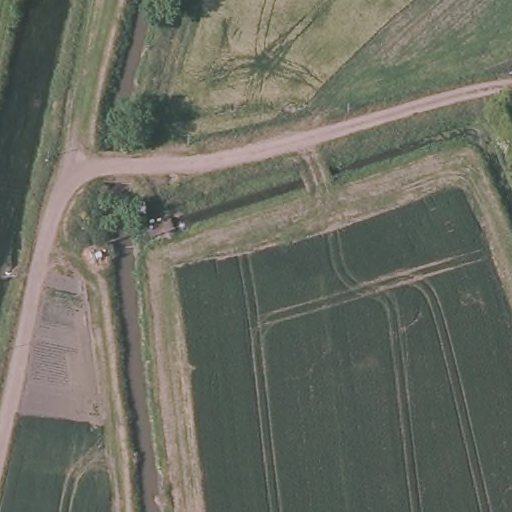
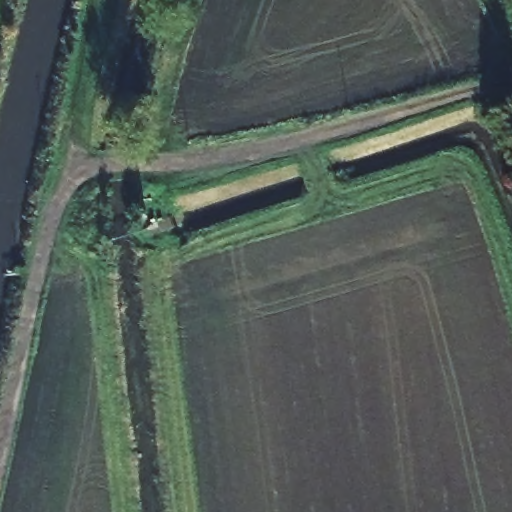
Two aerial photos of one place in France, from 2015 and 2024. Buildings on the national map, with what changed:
[]

